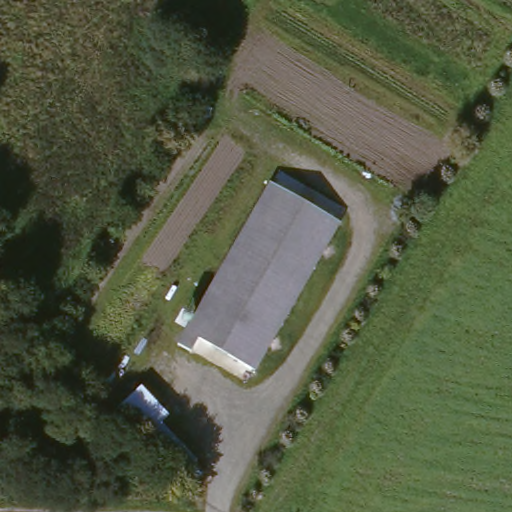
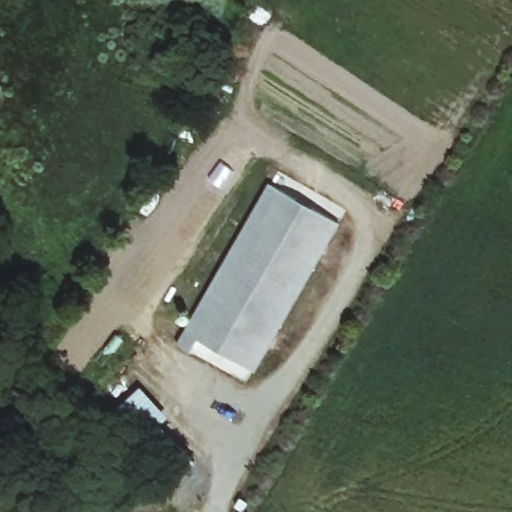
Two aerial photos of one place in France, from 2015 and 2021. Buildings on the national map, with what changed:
unchanged [(340,217),(254,367),(201,338),(194,348),(181,340),(273,179),(340,217)]
unchanged [(198,459),(183,472),(146,435),(161,421),(198,459)]

